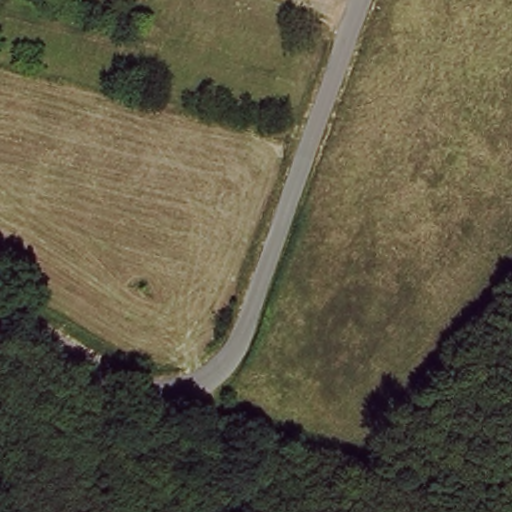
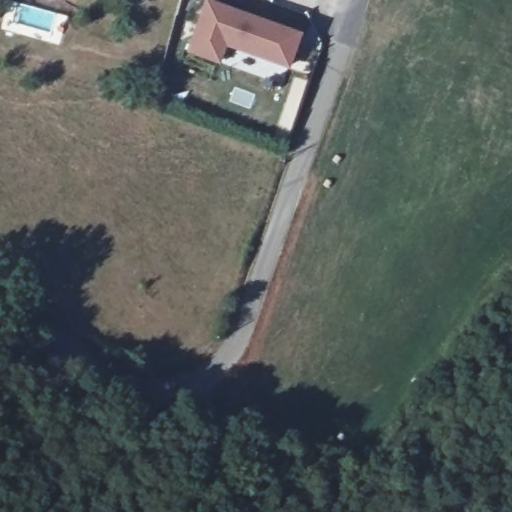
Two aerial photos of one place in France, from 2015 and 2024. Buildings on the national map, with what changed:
demolished [(51,0),(47,12),(13,4),(14,0),(51,0)]
demolished [(80,0),(91,0),(90,2),(80,0)]
new [(304,34),(290,70),(227,47),(220,65),(187,52),(207,0),(304,34)]

